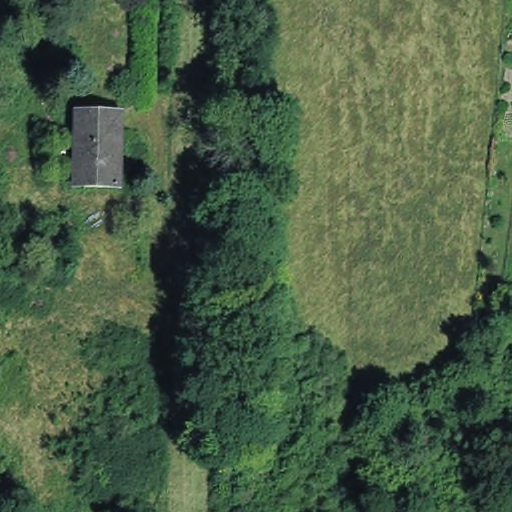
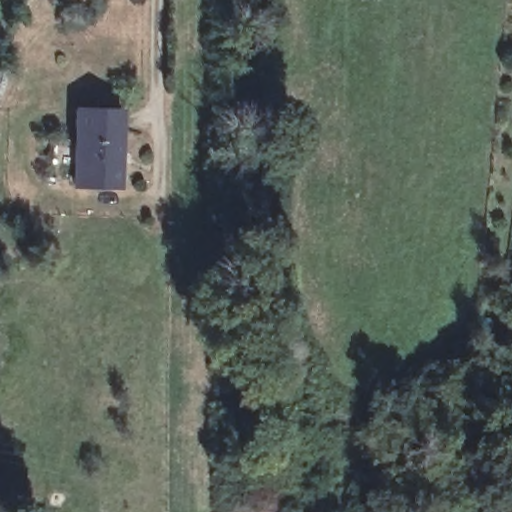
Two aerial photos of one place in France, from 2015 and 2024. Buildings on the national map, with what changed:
unchanged [(74,110),(119,112),(116,188),(71,186),(74,110)]

